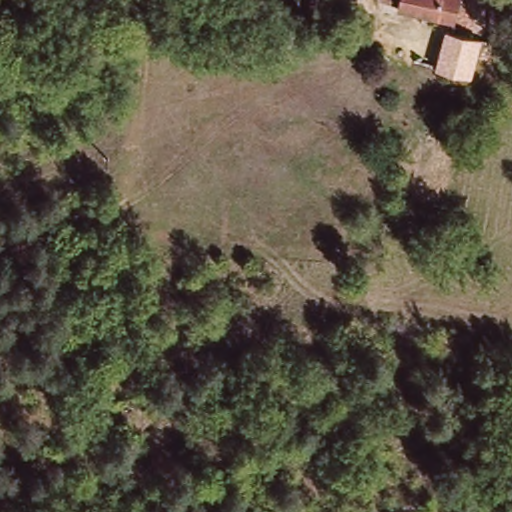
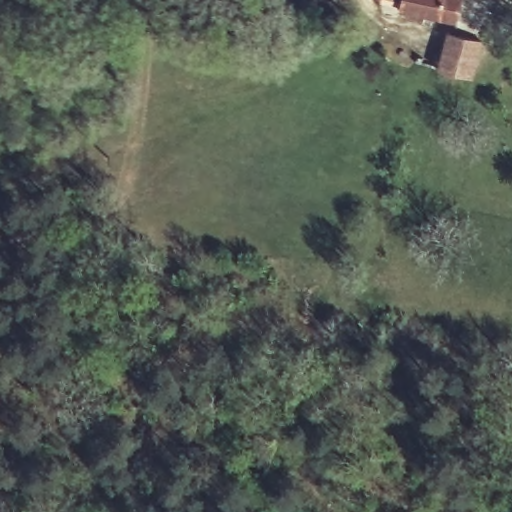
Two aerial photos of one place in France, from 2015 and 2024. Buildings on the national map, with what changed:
unchanged [(395,0),(478,0),(474,12),(463,11),(455,26),(393,8),(395,0)]
unchanged [(442,33),(449,33),(452,29),(479,39),(469,77),(432,66),(442,33)]

